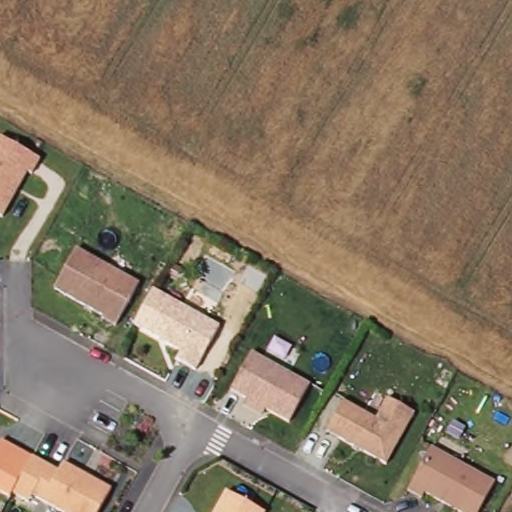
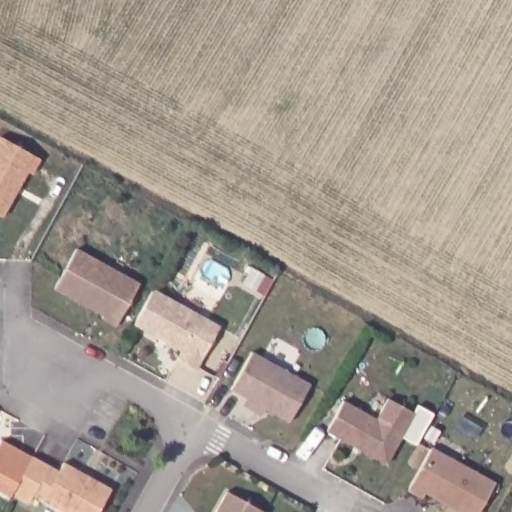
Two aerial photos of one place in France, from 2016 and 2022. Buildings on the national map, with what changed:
unchanged [(27,174),(23,172),(0,213),(0,140),(36,159),(27,174)]
unchanged [(72,250),(135,284),(112,326),(97,319),(99,316),(50,289),(72,250)]
unchanged [(135,325),(135,323),(154,290),(220,327),(196,370),(177,360),(182,351),(166,342),(161,339),(135,325)]
unchanged [(240,406),(243,399),(227,390),(247,352),(306,385),(285,422),(261,409),(257,415),(240,406)]
unchanged [(339,401),(361,413),(372,420),(383,399),(410,413),(382,465),(322,432),(339,401)]
unchanged [(427,448),(491,483),(474,512),(454,512),(420,493),(417,498),(403,491),(427,448)]
unchanged [(59,472),(64,463),(77,470),(89,477),(112,489),(99,512),(62,512),(33,496),(30,502),(12,493),(32,457),(59,472)]
unchanged [(227,487),(265,508),(262,512),(213,512),(227,487)]

